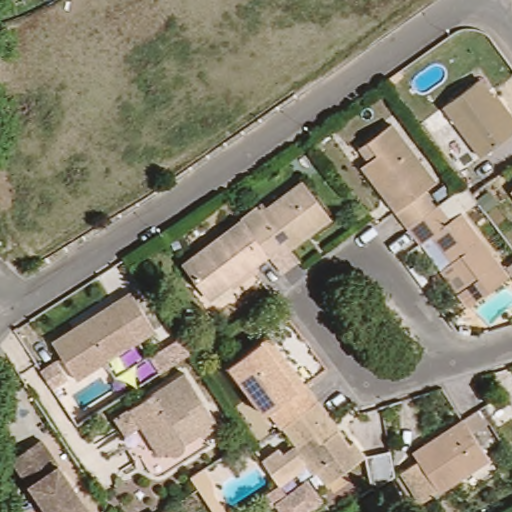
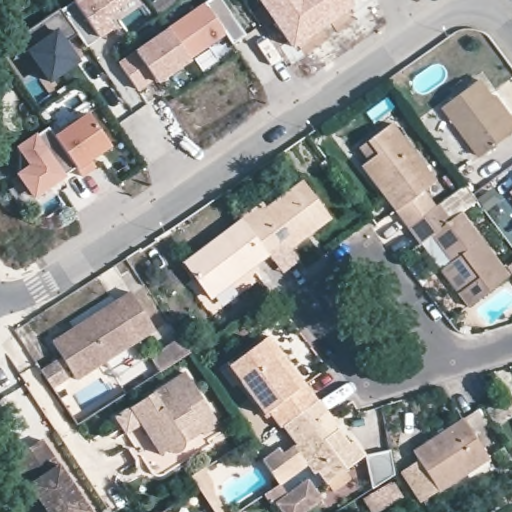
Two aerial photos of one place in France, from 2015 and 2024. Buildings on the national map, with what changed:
new [(128,0),(130,3),(107,18),(114,29),(99,39),(88,47),(82,39),(63,11),(73,0),(128,0)]
new [(331,26),(293,50),(257,0),(349,0),(355,9),(353,10),(358,19),(336,34),(331,26)]
new [(212,1),(239,40),(227,49),(221,41),(161,83),(157,79),(140,90),(122,65),(212,1)]
new [(79,66),(50,87),(19,42),(63,11),(82,39),(94,56),(79,66)]
unchanged [(448,106),(485,78),(498,96),(503,93),(512,106),(512,138),(486,158),(448,106)]
new [(98,170),(86,179),(80,170),(59,141),(93,117),(115,148),(120,155),(98,170)]
unchanged [(424,190),(435,205),(409,225),(362,165),(369,160),(360,146),(368,140),(391,123),(436,181),(424,190)]
new [(23,146),(49,127),(59,141),(80,170),(41,197),(21,169),(23,146)]
unchanged [(331,222),(289,254),(282,245),(267,257),(242,224),(259,210),(263,215),(303,185),(331,222)]
unchanged [(452,260),(433,235),(423,244),(409,225),(435,205),(439,203),(451,219),(461,212),(510,275),(469,307),(458,292),(441,269),(452,260)]
unchanged [(267,257),(270,260),(212,304),(184,269),(242,224),(267,257)]
unchanged [(78,379),(54,341),(57,339),(91,318),(114,303),(132,292),(156,330),(78,379)]
unchanged [(284,425),(281,428),(270,412),(263,417),(226,368),(262,340),(269,334),(305,384),(317,400),(284,425)]
unchanged [(191,352),(159,372),(150,357),(181,338),(191,352)]
unchanged [(70,378),(54,388),(42,370),(58,359),(70,378)]
unchanged [(222,426),(208,434),(211,439),(162,469),(159,471),(157,471),(155,470),(153,469),(115,411),(186,367),(222,426)]
unchanged [(354,439),(367,455),(346,471),(352,478),(334,491),(328,483),(327,484),(318,472),(315,474),(308,464),(281,484),(263,459),(280,448),(285,454),(298,444),(284,425),(317,400),(327,413),(338,429),(349,444),(354,439)]
unchanged [(490,457),(421,502),(401,472),(417,460),(413,452),(464,419),(490,457)]
unchanged [(30,484),(19,469),(33,460),(26,449),(42,439),(92,512),(48,512),(30,484)]
unchanged [(198,484),(193,478),(204,470),(213,483),(216,495),(227,512),(154,512),(198,484)]
unchanged [(276,506),(272,508),(265,496),(281,487),(287,494),(308,478),(325,501),(308,512),(281,512),(276,506)]

